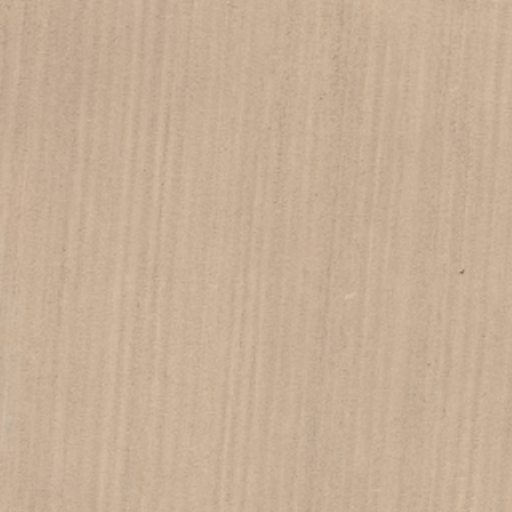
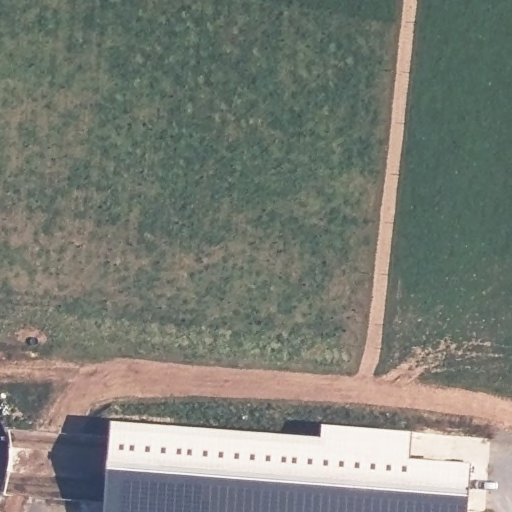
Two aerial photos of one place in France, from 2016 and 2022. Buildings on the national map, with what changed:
new [(320,436),(323,422),(412,430),(410,456),(470,461),(466,512),(105,512),(113,419),(320,436)]

